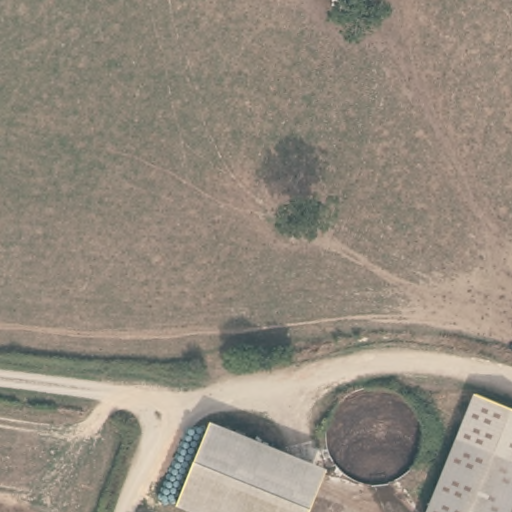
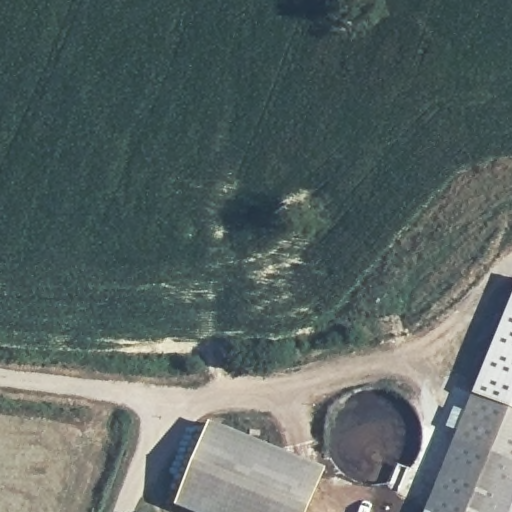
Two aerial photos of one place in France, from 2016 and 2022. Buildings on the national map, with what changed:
new [(512,408),(476,394),(512,300),(512,408)]
unchanged [(476,394),(512,408),(512,483),(501,512),(427,512),(476,394)]
unchanged [(326,471),(308,512),(197,512),(176,503),(210,422),(326,471)]
new [(512,483),(512,512),(501,512),(512,483)]

